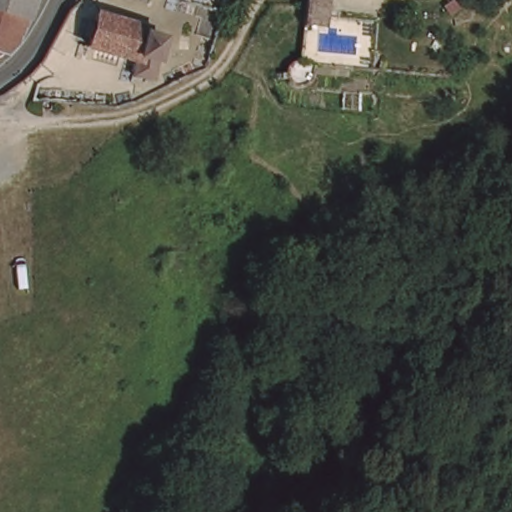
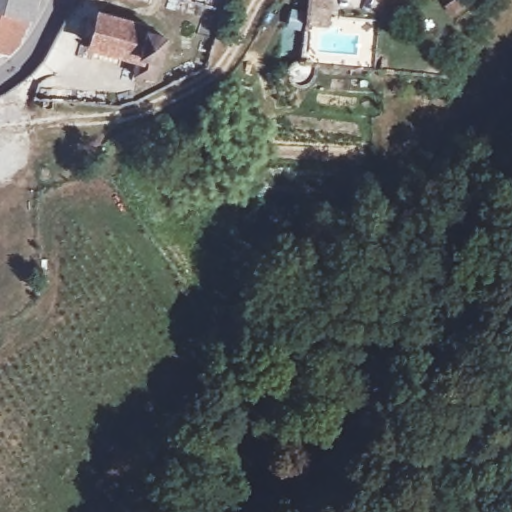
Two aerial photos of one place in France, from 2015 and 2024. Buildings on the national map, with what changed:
unchanged [(0,16),(0,0),(35,0),(28,25),(0,16)]
unchanged [(330,0),(328,24),(309,21),(311,0),(330,0)]
unchanged [(103,15),(154,26),(153,34),(170,38),(162,79),(138,74),(141,60),(95,51),(103,15)]
unchanged [(29,26),(11,51),(0,47),(0,16),(28,25),(29,26)]

